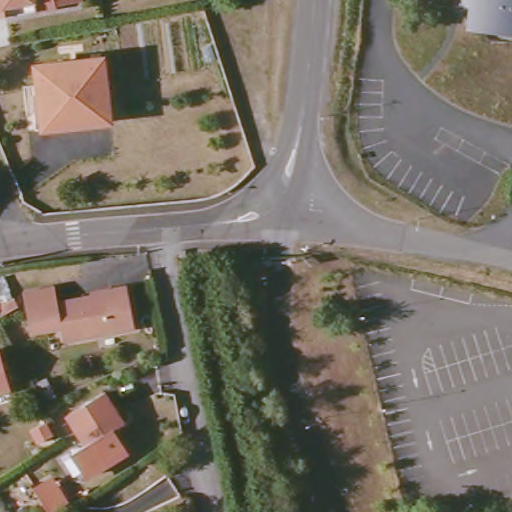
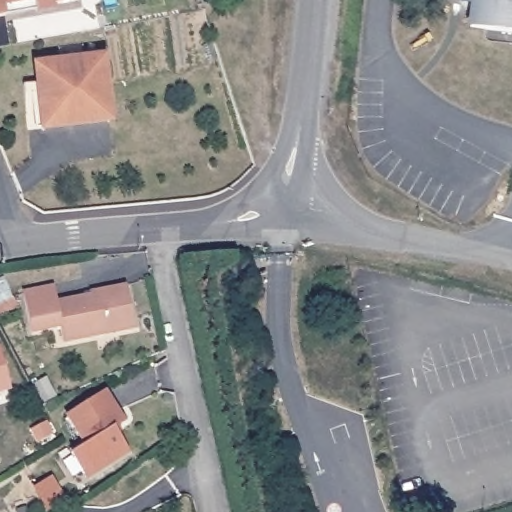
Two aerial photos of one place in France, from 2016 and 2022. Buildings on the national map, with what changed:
unchanged [(8,15),(0,16),(0,0),(34,0),(6,5),(8,15)]
unchanged [(59,6),(38,10),(37,0),(78,0),(59,4),(59,6)]
unchanged [(475,21),(477,3),(481,4),(481,0),(512,0),(512,30),(474,26),(475,21)]
unchanged [(104,66),(109,122),(68,126),(67,116),(41,119),(37,74),(104,66)]
unchanged [(123,283),(133,325),(63,341),(59,327),(29,334),(20,293),(50,288),(53,301),(89,293),(88,290),(123,283)]
unchanged [(0,389),(0,363),(8,386),(0,389)]
unchanged [(128,426),(116,435),(131,456),(98,480),(89,478),(75,457),(89,447),(71,420),(107,395),(128,426)]

